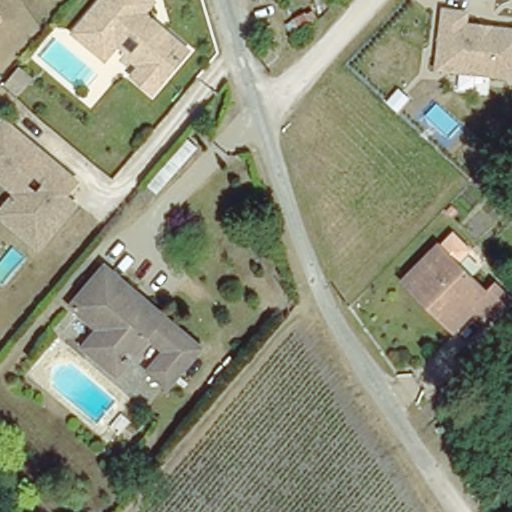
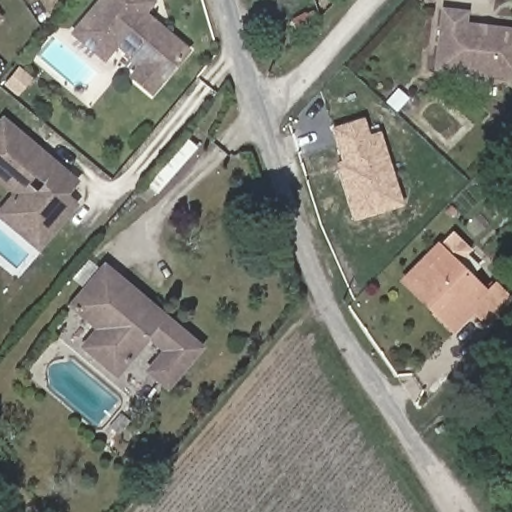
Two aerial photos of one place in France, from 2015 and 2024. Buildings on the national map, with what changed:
unchanged [(105,58),(79,37),(75,34),(76,31),(101,0),(153,0),(157,3),(148,15),(158,24),(169,32),(193,51),(168,83),(148,67),(144,67),(131,56),(132,54),(123,47),(112,59),(110,62),(105,58)]
unchanged [(322,11),(319,0),(335,0),(322,11)]
unchanged [(308,11),(309,13),(316,10),(318,16),(311,19),(312,22),(300,28),(295,17),(308,11)]
unchanged [(442,11),(464,14),(463,26),(512,30),(512,77),(436,69),(442,11)]
unchanged [(0,15),(5,22),(0,25),(0,15)]
unchanged [(6,80),(19,66),(30,75),(17,90),(6,80)]
new [(341,160),(330,127),(364,117),(368,133),(380,130),(402,205),(353,221),(335,162),(341,160)]
unchanged [(0,220),(0,209),(11,196),(0,186),(0,124),(35,153),(27,162),(35,168),(42,159),(70,184),(48,211),(54,216),(57,219),(33,247),(0,220)]
unchanged [(446,229),(465,246),(451,260),(482,291),(491,282),(507,297),(484,322),(470,308),(450,328),(435,314),(399,278),(433,243),(446,229)]
unchanged [(148,364),(165,343),(150,329),(117,368),(84,340),(98,322),(70,299),(105,259),(200,339),(166,380),(148,364)]

